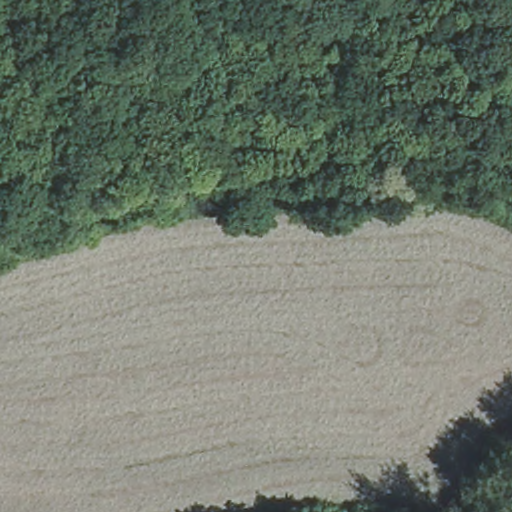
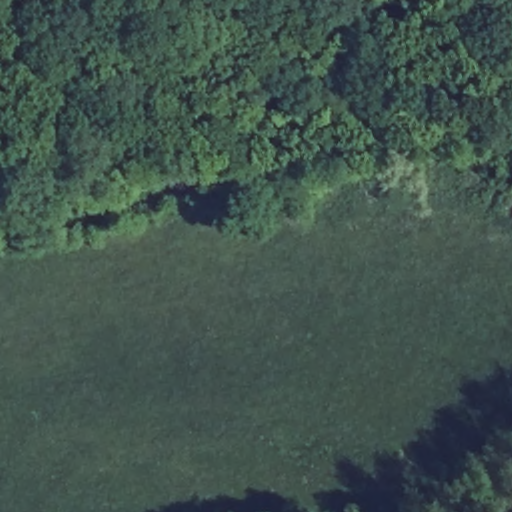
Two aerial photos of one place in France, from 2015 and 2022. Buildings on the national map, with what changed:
[]

